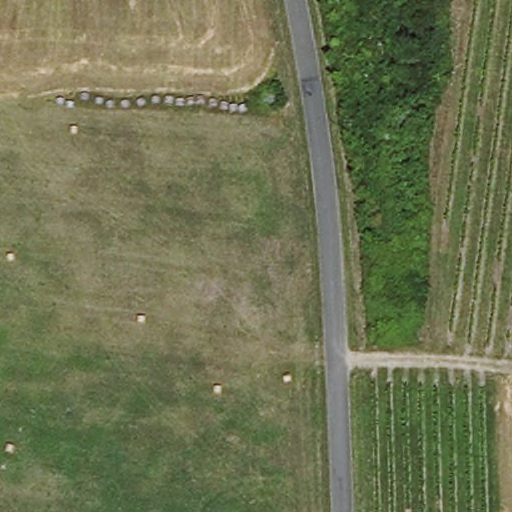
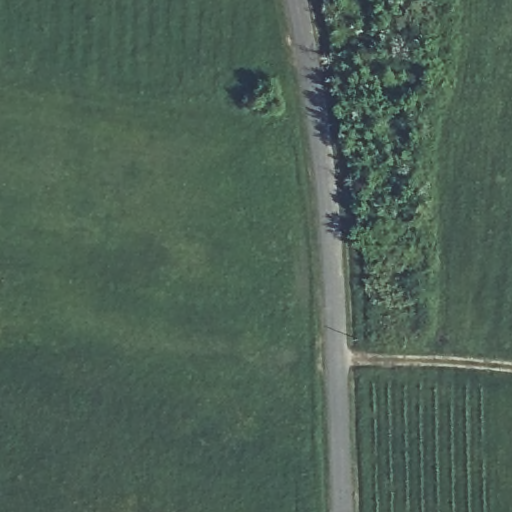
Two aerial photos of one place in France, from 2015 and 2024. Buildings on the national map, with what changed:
[]

